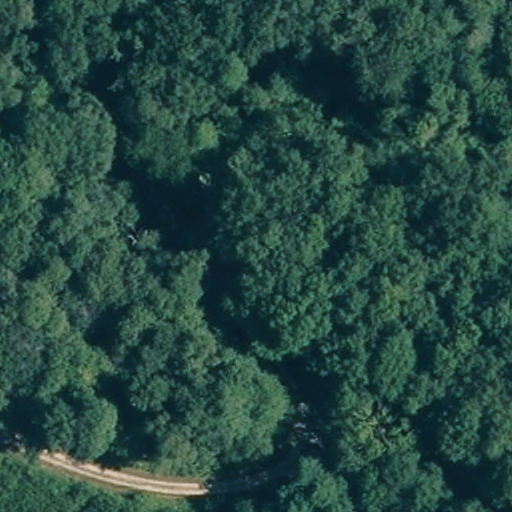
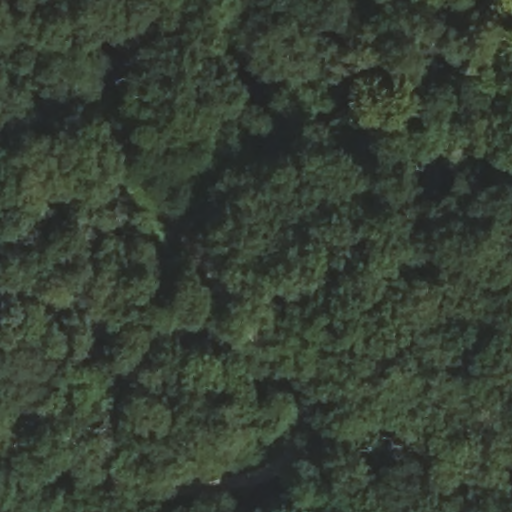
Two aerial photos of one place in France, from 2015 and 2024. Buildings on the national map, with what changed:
unchanged [(298,474),(311,486),(290,510),(276,497),(298,474)]

